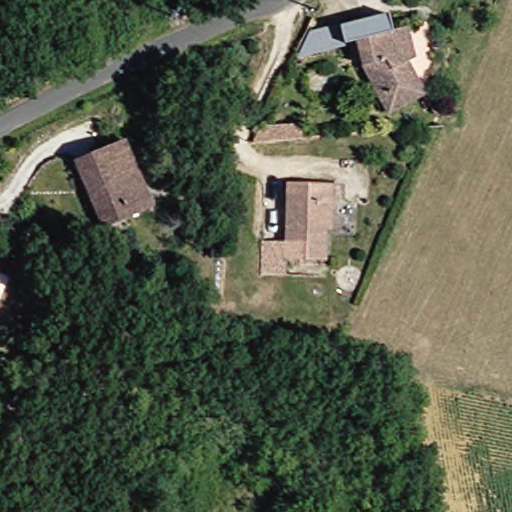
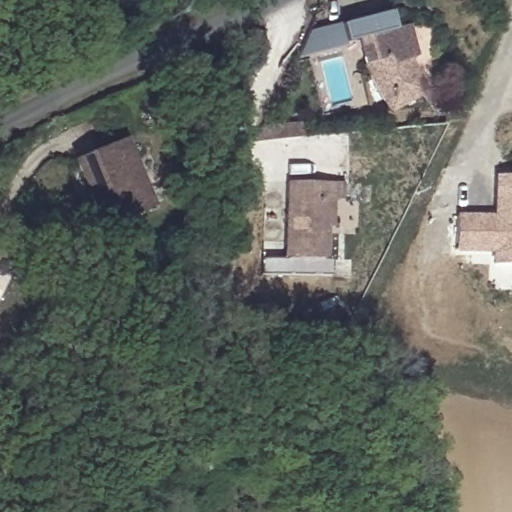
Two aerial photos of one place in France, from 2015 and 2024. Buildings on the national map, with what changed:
unchanged [(388,32),(396,30),(402,28),(411,61),(404,63),(418,92),(383,111),(358,65),(352,40),(341,43),(288,55),(292,47),(298,34),(337,27),(383,15),(388,32)]
unchanged [(260,127),(300,124),(302,139),(252,142),(260,127)]
unchanged [(125,140),(151,205),(103,225),(77,160),(125,140)]
new [(492,253),(456,252),(457,214),(492,215),(493,176),(512,177),(512,265),(492,265),(492,253)]
unchanged [(326,260),(287,259),(287,275),(262,274),(262,243),(286,244),(287,182),(333,183),(341,183),(341,201),(333,201),(328,201),(326,260)]

